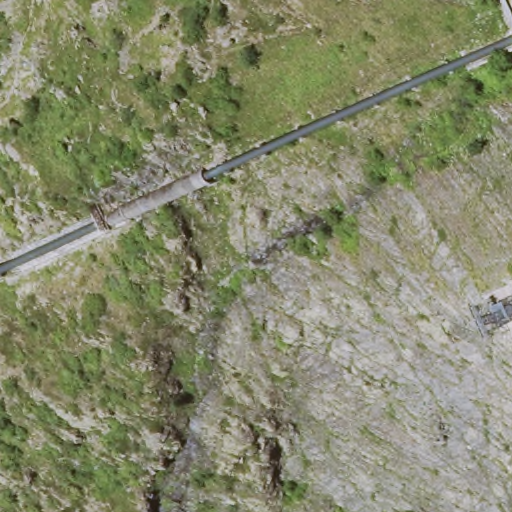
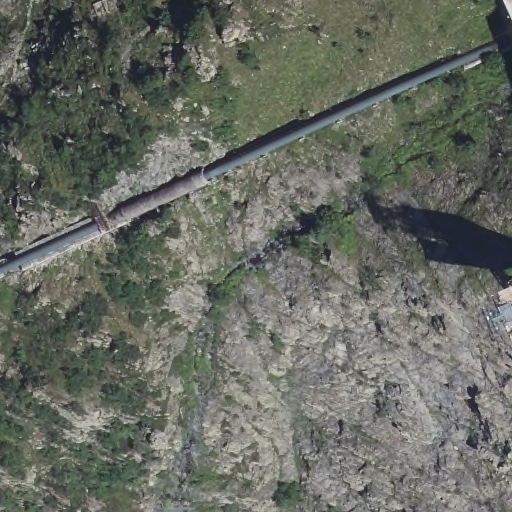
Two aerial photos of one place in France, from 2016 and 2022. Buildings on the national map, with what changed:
unchanged [(512,0),(512,18),(504,0),(512,0)]

